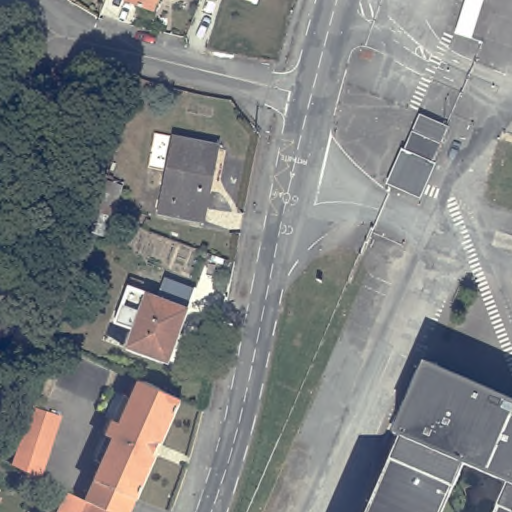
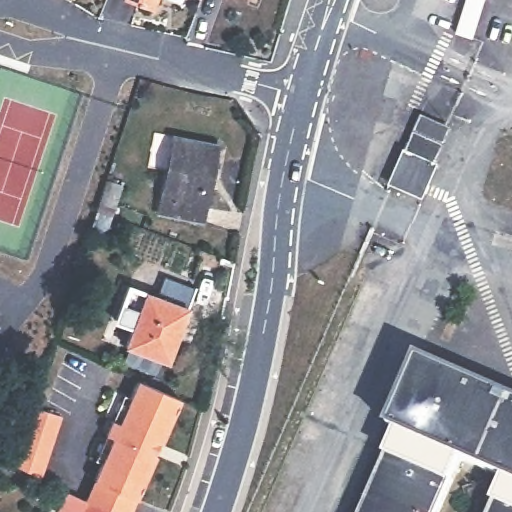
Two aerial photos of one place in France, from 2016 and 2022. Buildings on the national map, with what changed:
unchanged [(163,0),(159,11),(130,1),(130,0),(163,0)]
unchanged [(253,0),(260,0),(260,2),(253,0)]
unchanged [(431,111),(458,123),(443,158),(428,190),(401,178),(406,168),(431,111)]
unchanged [(185,136),(225,147),(206,223),(164,211),(185,136)]
unchanged [(179,340),(169,366),(131,351),(139,332),(121,326),(135,291),(164,302),(172,283),(202,295),(195,314),(184,342),(179,340)]
unchanged [(3,322),(0,327),(0,320),(3,322)]
unchanged [(512,398),(512,512),(493,512),(495,508),(495,503),(507,480),(463,462),(451,483),(448,491),(439,512),(366,512),(388,462),(389,457),(398,432),(392,429),(422,358),(512,398)]
unchanged [(110,440),(117,426),(129,400),(136,403),(144,387),(186,406),(140,504),(98,483),(105,468),(99,465),(110,440)]
unchanged [(15,458),(35,401),(66,413),(42,477),(11,464),(15,458)]
unchanged [(98,483),(140,504),(136,512),(97,512),(89,508),(86,507),(98,483)]
unchanged [(89,508),(97,512),(86,512),(89,508)]

